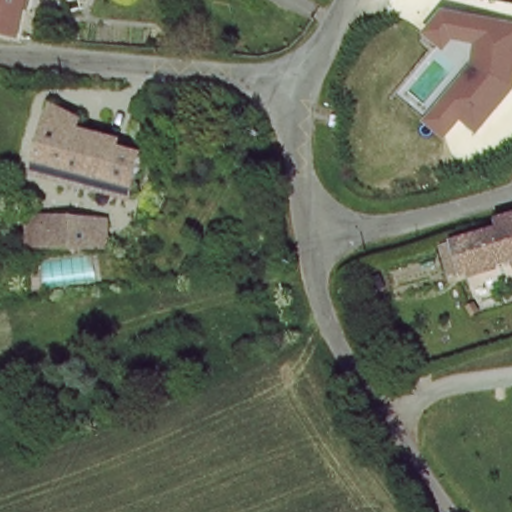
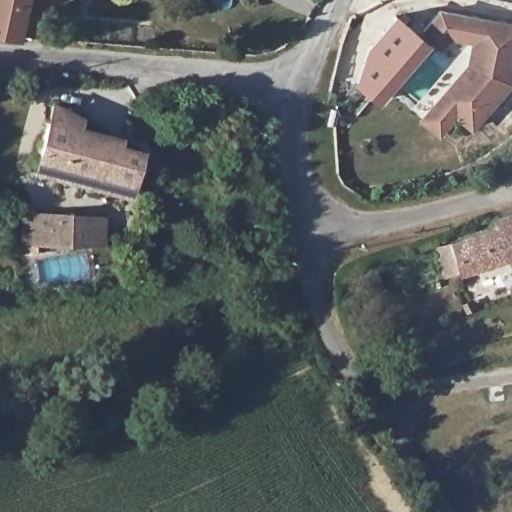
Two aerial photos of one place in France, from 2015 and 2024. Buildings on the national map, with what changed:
unchanged [(0,40),(0,0),(30,0),(23,43),(0,40)]
unchanged [(476,133),(438,100),(464,73),(467,43),(448,42),(442,51),(424,29),(442,8),(512,23),(512,95),(476,133)]
new [(380,103),(355,83),(367,44),(395,13),(432,43),(380,103)]
unchanged [(46,119),(79,125),(78,133),(116,143),(116,149),(143,154),(134,195),(36,179),(46,119)]
unchanged [(447,248),(461,243),(460,240),(502,226),(500,217),(512,213),(512,258),(470,273),(469,271),(455,275),(447,248)]
unchanged [(44,246),(46,218),(87,222),(87,233),(104,235),(103,245),(44,246)]

